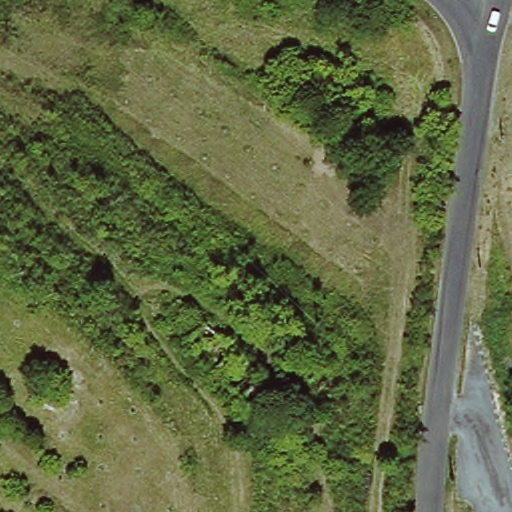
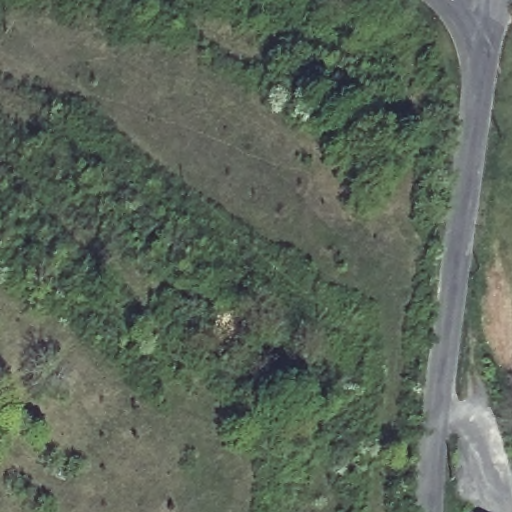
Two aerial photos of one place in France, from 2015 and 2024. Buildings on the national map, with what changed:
[]

